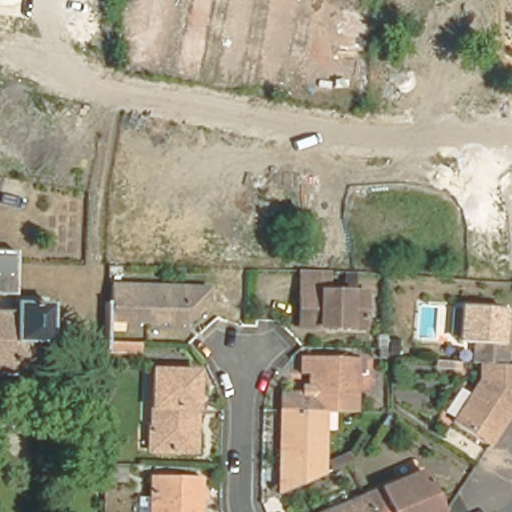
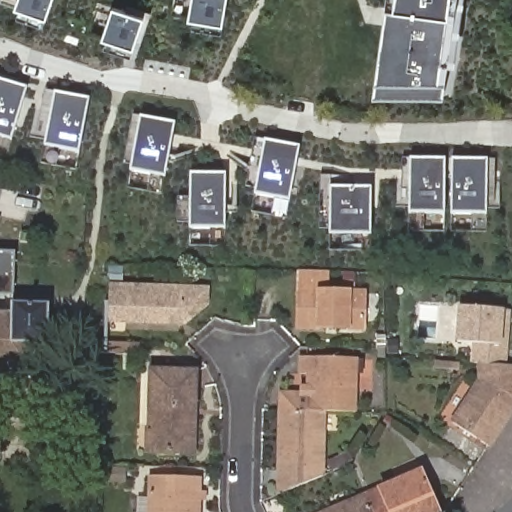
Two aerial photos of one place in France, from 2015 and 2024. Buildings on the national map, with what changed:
new [(48,17),(19,8),(21,0),(54,0),(48,17)]
new [(225,24),(192,18),(195,0),(229,0),(225,24)]
new [(446,97),(377,97),(390,0),(460,0),(446,97)]
new [(287,19),(282,83),(252,79),(256,32),(262,33),(265,18),(287,19)]
new [(14,141),(0,136),(0,81),(29,88),(14,141)]
new [(91,100),(81,153),(47,144),(57,92),(91,100)]
new [(177,124),(169,176),(134,168),(142,118),(177,124)]
new [(301,148),(292,201),(257,195),(267,142),(301,148)]
new [(447,161),(447,214),(411,213),(411,160),(447,161)]
new [(488,161),(488,214),(453,213),(453,160),(488,161)]
new [(227,177),(227,229),(192,229),(194,177),(227,177)]
new [(372,189),(374,236),(332,235),(331,189),(372,189)]
unchanged [(15,296),(0,296),(0,250),(16,250),(15,296)]
unchanged [(206,284),(205,300),(200,306),(181,323),(106,320),(106,311),(107,281),(206,284)]
unchanged [(293,325),(295,289),(360,291),(358,326),(329,326),(321,325),(293,325)]
unchanged [(13,299),(50,300),(49,338),(34,338),(33,371),(0,371),(0,306),(14,306),(13,299)]
unchanged [(480,359),(475,358),(475,340),(456,338),(458,303),(497,304),(506,304),(505,341),(504,360),(481,359),(480,359)]
unchanged [(317,406),(311,406),(291,406),(287,405),(287,388),(306,388),(306,382),(312,383),(312,369),(304,369),(305,353),(362,354),(361,407),(343,407),(333,406),(317,406)]
unchanged [(487,443),(451,420),(480,377),(480,359),(481,359),(504,360),(512,360),(512,403),(487,443)]
unchanged [(155,425),(155,368),(196,369),(200,369),(200,405),(200,410),(200,439),(164,440),(155,440),(155,425)]
unchanged [(291,406),(311,406),(317,406),(333,406),(331,469),(318,474),(315,476),(285,489),(287,405),(291,406)]
unchanged [(371,512),(360,488),(420,462),(440,510),(436,512),(371,512)]
unchanged [(122,465),(123,484),(102,484),(102,465),(122,465)]
unchanged [(203,467),(201,512),(151,512),(152,466),(203,467)]
unchanged [(371,512),(304,512),(360,488),(371,512)]

